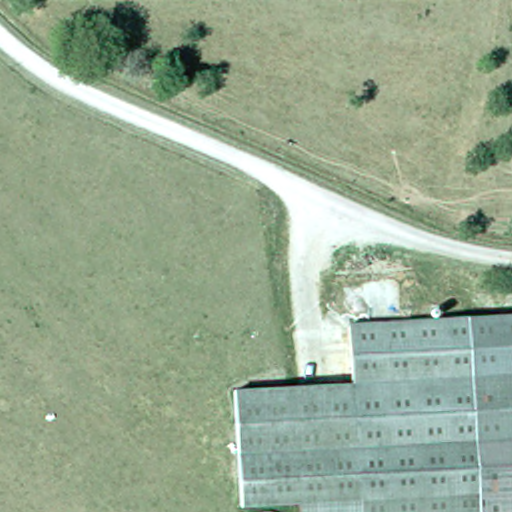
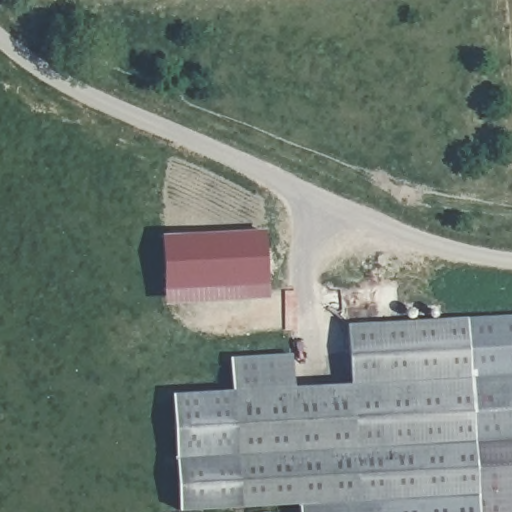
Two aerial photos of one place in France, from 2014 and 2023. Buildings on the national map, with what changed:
new [(267,230),(270,281),(170,285),(167,235),(267,230)]
unchanged [(360,500),(240,505),(232,388),(353,382),(349,322),(464,313),(464,318),(473,512),(361,512),(360,500)]
unchanged [(473,491),(464,318),(512,315),(512,512),(474,512),(473,491)]
new [(231,358),(293,354),(295,385),(232,388),(231,358)]
new [(232,390),(240,505),(241,509),(179,512),(172,394),(232,390)]
new [(298,502),(360,500),(361,512),(299,512),(298,502)]

